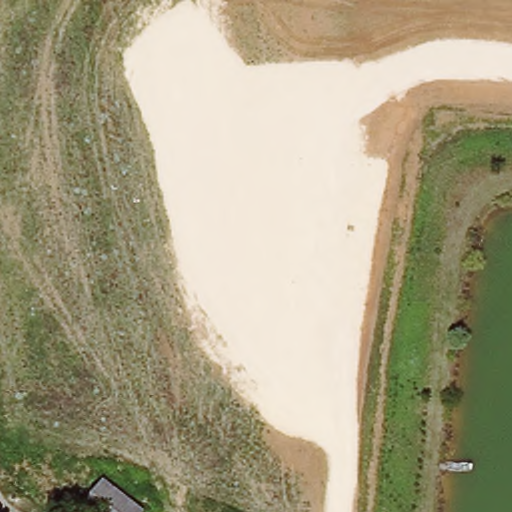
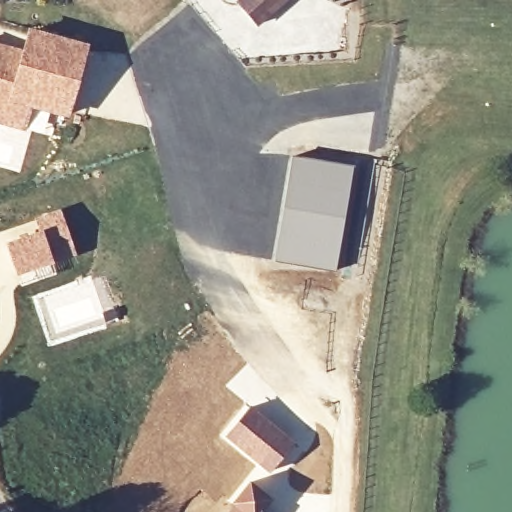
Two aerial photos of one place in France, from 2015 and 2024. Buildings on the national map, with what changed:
new [(288,0),(258,25),(240,2),(242,0),(288,0)]
new [(28,26),(90,44),(69,119),(31,109),(24,132),(0,125),(0,43),(21,49),(28,26)]
new [(293,155),(355,169),(336,274),(272,262),(293,155)]
new [(60,207),(77,254),(55,263),(34,218),(60,207)]
new [(250,405),(295,441),(269,473),(224,437),(250,405)]
new [(249,480),(272,497),(262,512),(225,512),(231,503),(249,480)]

